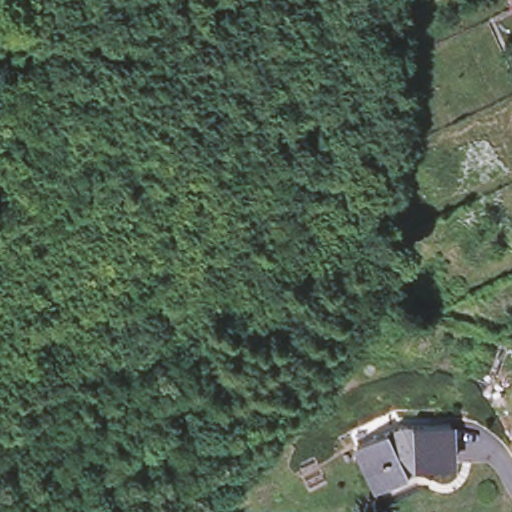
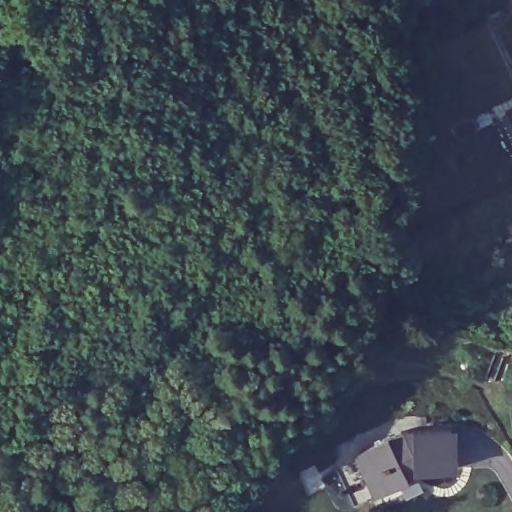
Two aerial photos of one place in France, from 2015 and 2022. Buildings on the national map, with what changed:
unchanged [(358,449),(403,429),(451,429),(452,467),(412,468),(409,465),(404,468),(407,477),(378,491),(358,449)]

